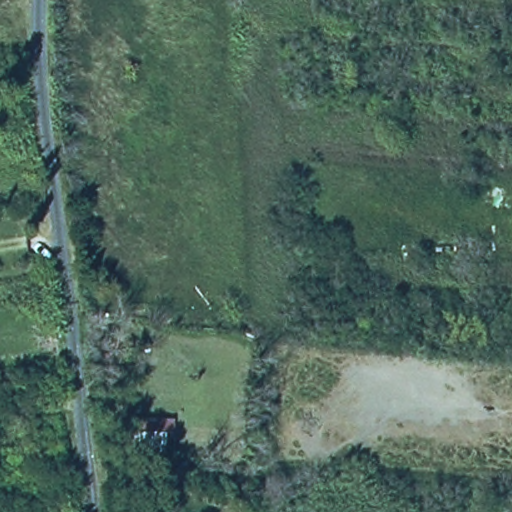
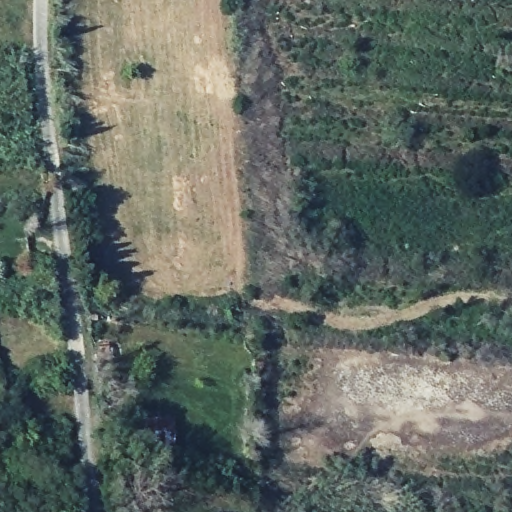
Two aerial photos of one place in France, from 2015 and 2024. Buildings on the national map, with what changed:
unchanged [(175,416),(173,454),(130,451),(132,410),(175,416)]

